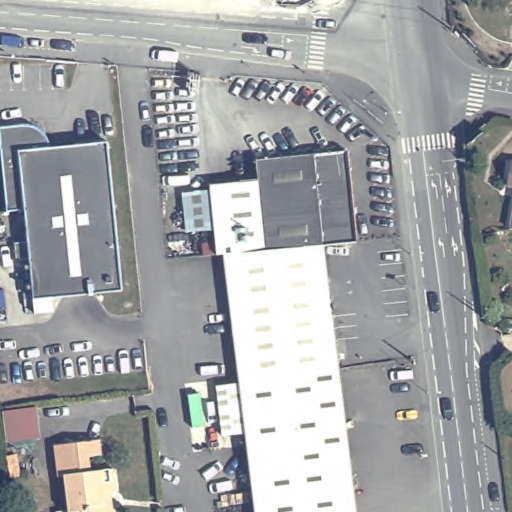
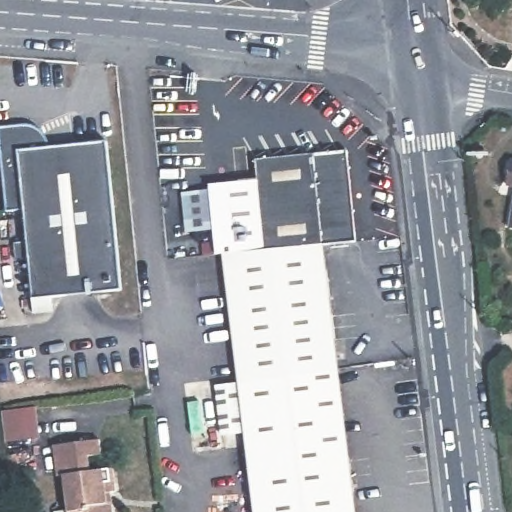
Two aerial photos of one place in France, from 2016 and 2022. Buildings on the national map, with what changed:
unchanged [(119,285),(30,293),(25,253),(14,253),(12,236),(23,235),(20,202),(4,204),(0,164),(0,120),(26,118),(35,121),(42,128),(46,134),(48,141),(72,139),(105,136),(119,285)]
unchanged [(263,179),(263,163),(352,154),(359,242),(329,245),(229,254),(223,255),(216,184),(263,179)]
unchanged [(510,164),(512,164),(512,187),(507,187),(510,164)]
unchanged [(512,230),(510,230),(512,217),(512,230)]
unchanged [(329,245),(345,370),(245,383),(229,254),(329,245)]
unchanged [(354,445),(363,512),(261,512),(245,383),(345,370),(354,445)]
unchanged [(6,441),(2,410),(36,406),(40,437),(6,441)]
unchanged [(101,440),(103,455),(90,457),(91,468),(115,465),(117,490),(108,491),(109,502),(114,507),(115,512),(70,512),(66,475),(58,476),(56,456),(55,445),(101,440)]

